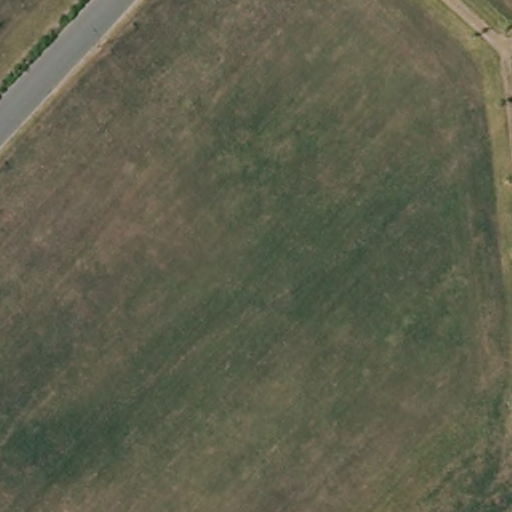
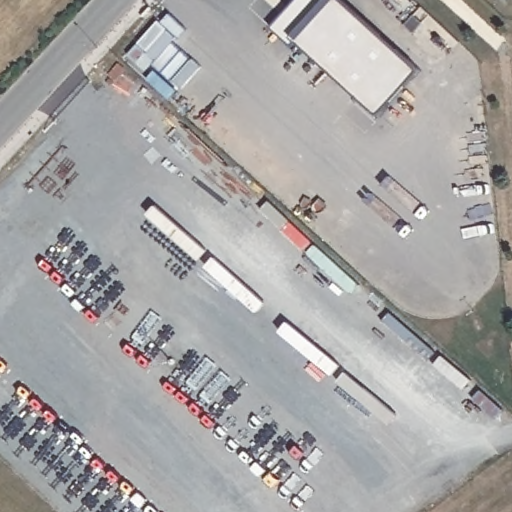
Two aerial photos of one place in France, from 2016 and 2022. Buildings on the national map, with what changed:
new [(341,0),(421,72),(381,117),(299,42),(294,48),(272,29),(298,0),(341,0)]

